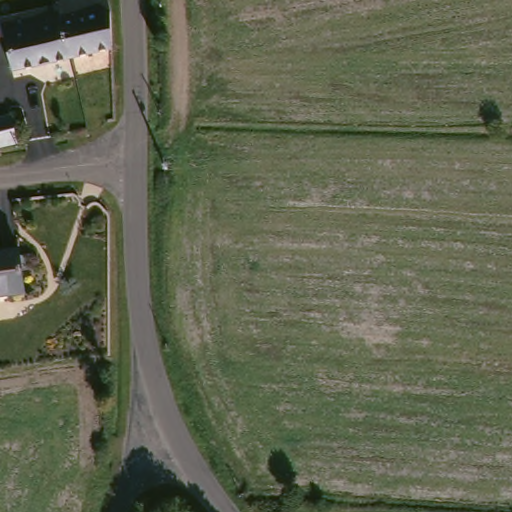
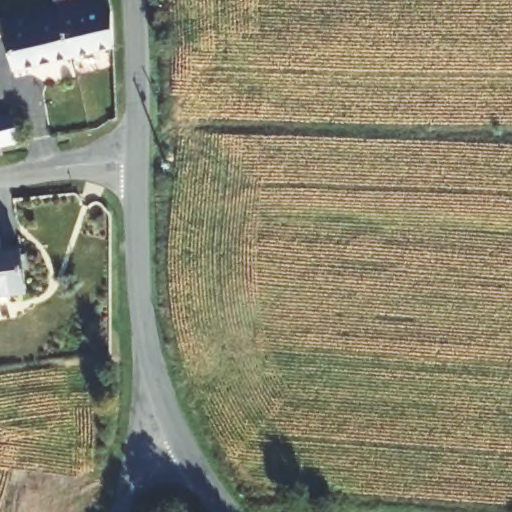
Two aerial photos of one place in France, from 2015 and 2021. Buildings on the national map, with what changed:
unchanged [(108,59),(68,63),(11,68),(2,18),(57,14),(57,6),(104,3),(108,59)]
unchanged [(16,149),(0,152),(0,123),(12,121),(16,149)]
unchanged [(0,300),(0,255),(18,253),(24,298),(0,300)]

